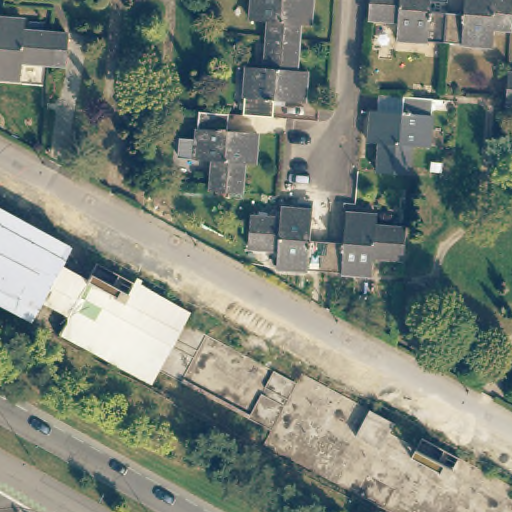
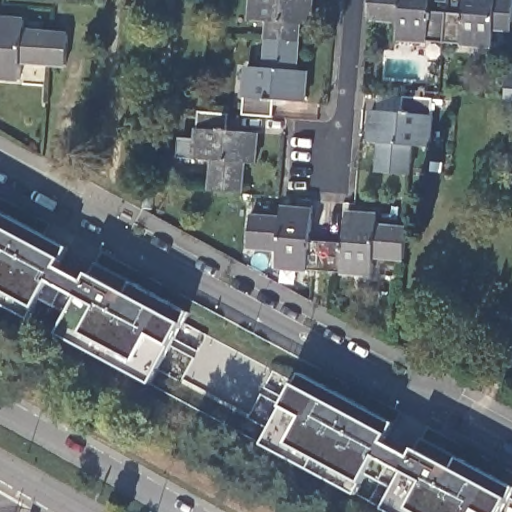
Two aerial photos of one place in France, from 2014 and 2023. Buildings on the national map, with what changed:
unchanged [(307,26),(296,26),(295,43),(264,41),(265,23),(247,21),(249,0),(309,0),(307,26)]
unchanged [(371,0),(432,0),(430,13),(447,14),(445,42),(445,44),(397,40),(398,21),(369,19),(371,0)]
unchanged [(447,14),(465,16),(466,0),(510,0),(512,0),(512,31),(495,29),(493,48),(445,44),(445,42),(447,14)]
unchanged [(60,66),(45,65),(16,62),(15,81),(0,80),(0,19),(20,20),(19,31),(48,34),(62,35),(60,66)]
unchanged [(293,72),(303,73),(301,103),(271,101),(270,118),(241,116),(240,115),(244,67),(262,69),(264,41),(295,43),(293,72)]
unchanged [(502,98),(504,74),(512,75),(512,106),(502,105),(502,98)]
unchanged [(431,148),(412,146),(409,175),(379,172),(381,143),(370,142),(373,111),(378,112),(380,94),(405,96),(435,98),(431,148)]
unchanged [(230,114),(229,131),(258,134),(255,165),(246,164),(244,193),(212,191),(215,161),(196,159),(181,158),(183,138),(198,139),(200,112),(230,114)]
unchanged [(60,335),(67,323),(65,317),(40,305),(31,322),(0,305),(0,208),(73,248),(64,266),(126,299),(135,282),(191,312),(152,387),(60,335)]
unchanged [(272,268),(274,249),(245,247),(247,216),(276,219),(277,208),(308,210),(306,241),(322,242),(320,272),(272,268)]
unchanged [(399,260),(370,257),(369,276),(320,272),(322,242),(340,244),(342,213),(373,216),(372,226),(401,229),(399,260)]
new [(391,434),(386,443),(410,457),(416,449),(423,439),(457,457),(512,487),(512,496),(510,499),(503,512),(386,512),(383,510),(406,472),(376,457),(363,483),(358,495),(265,446),(285,409),(297,386),(303,373),(396,424),(391,434)]

